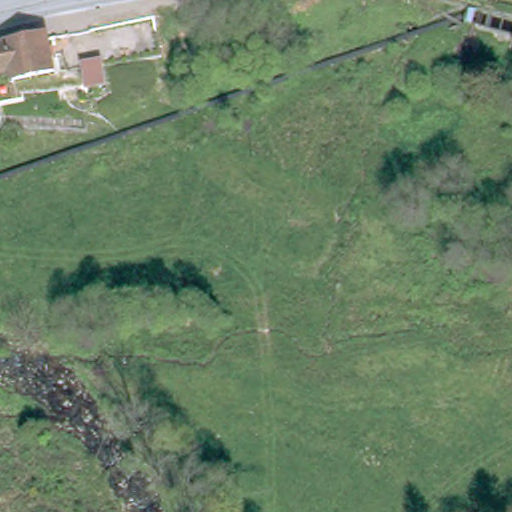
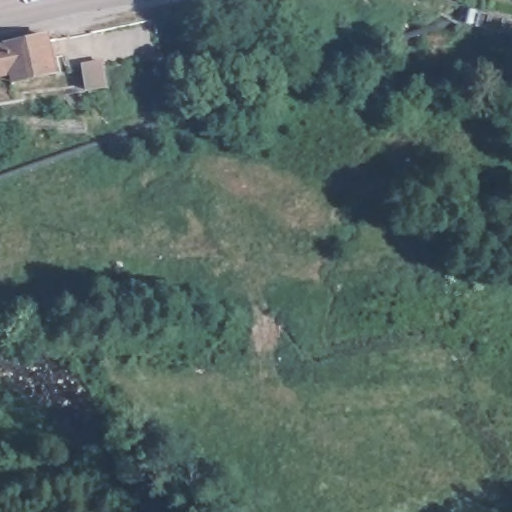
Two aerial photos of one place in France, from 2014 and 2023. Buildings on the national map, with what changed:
unchanged [(47,39),(55,74),(14,84),(12,75),(9,48),(47,39)]
unchanged [(0,78),(0,50),(9,48),(12,75),(7,76),(0,78)]
unchanged [(115,90),(92,95),(87,71),(109,66),(115,90)]

